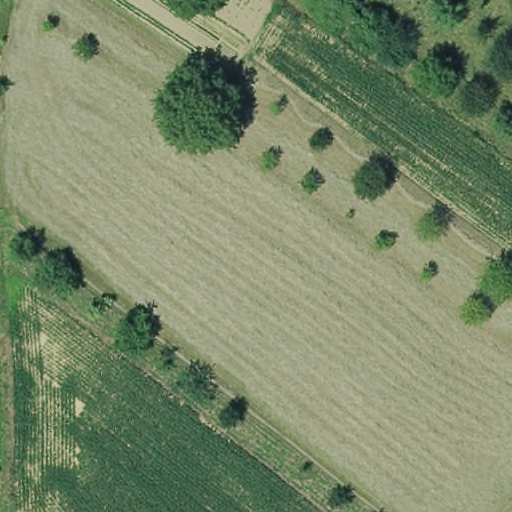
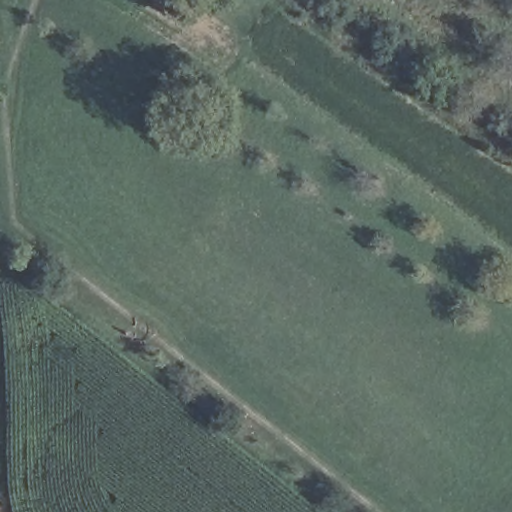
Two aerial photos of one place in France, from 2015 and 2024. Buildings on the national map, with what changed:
[]

